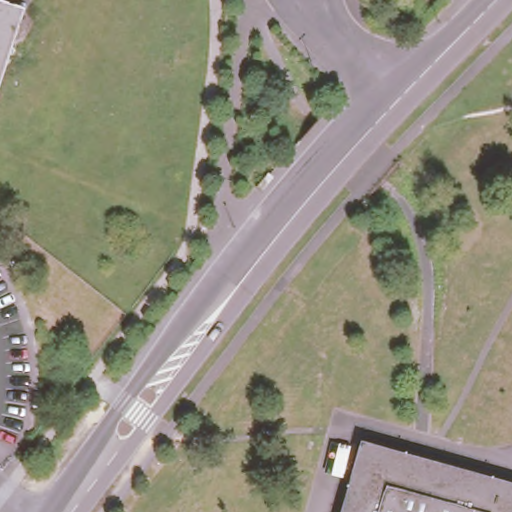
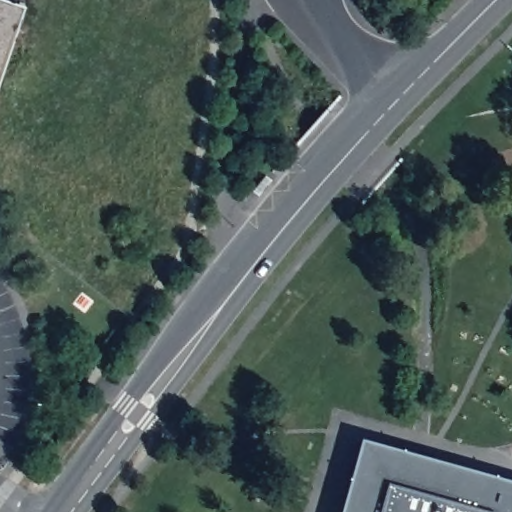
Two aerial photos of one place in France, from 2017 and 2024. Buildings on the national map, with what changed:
unchanged [(0,1),(23,9),(0,76),(0,1)]
unchanged [(512,480),(512,512),(340,512),(361,438),(512,480)]

